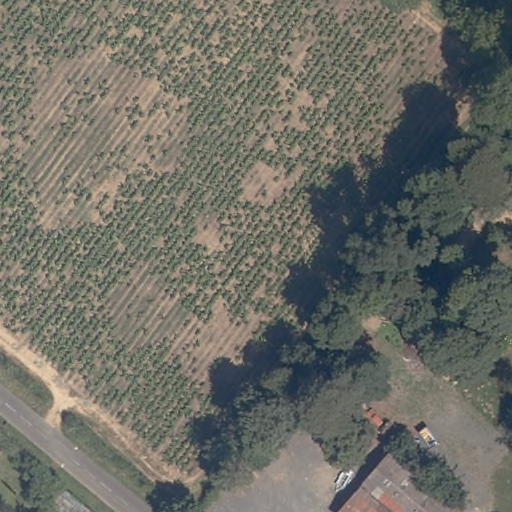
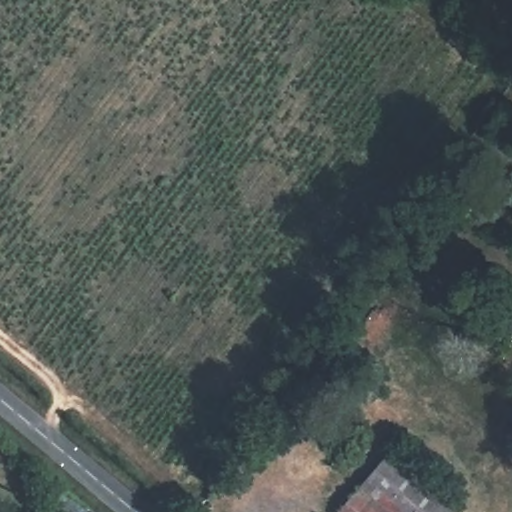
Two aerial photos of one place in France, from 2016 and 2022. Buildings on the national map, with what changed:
unchanged [(466,508),(463,512),(344,512),(394,451),(395,450),(406,459),(466,508)]

